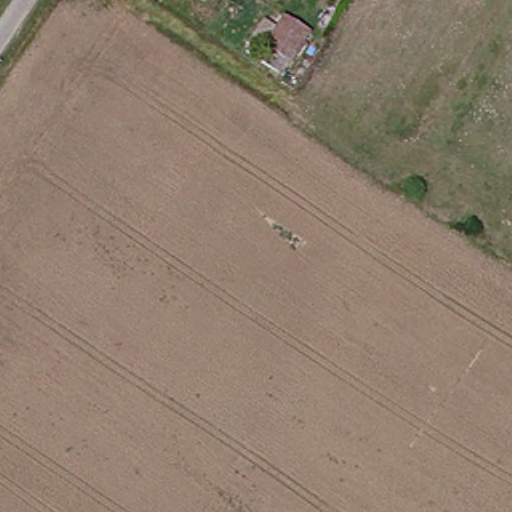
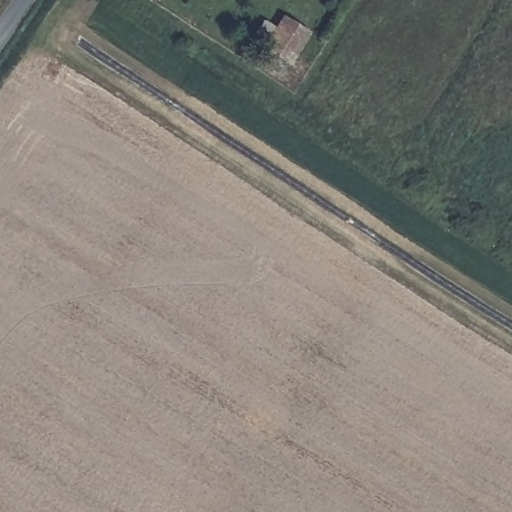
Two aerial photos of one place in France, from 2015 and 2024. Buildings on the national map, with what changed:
unchanged [(295,35),(275,67),(255,54),(273,22),(295,35)]

